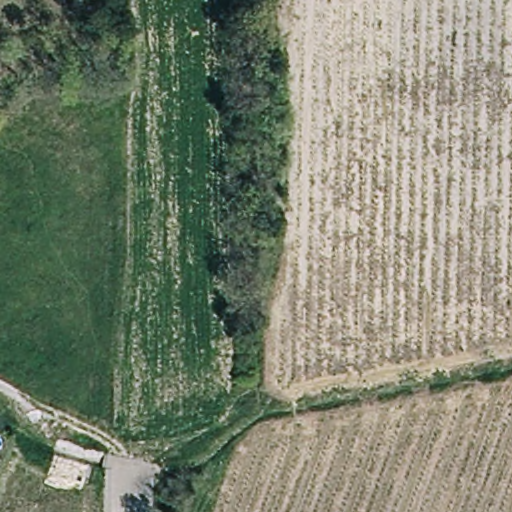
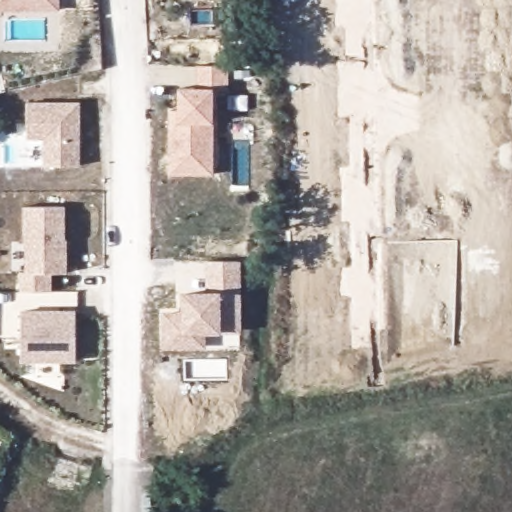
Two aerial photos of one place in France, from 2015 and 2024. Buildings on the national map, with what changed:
new [(61,11),(0,11),(0,0),(60,0),(61,11)]
new [(177,109),(178,89),(199,87),(198,66),(228,65),(229,91),(215,91),(213,124),(214,174),(169,174),(170,109),(177,109)]
new [(81,166),(42,165),(43,138),(27,138),(27,101),(81,101),(81,166)]
new [(26,273),(23,206),(67,206),(66,240),(68,240),(68,273),(53,273),(52,291),(19,291),(19,272),(26,273)]
new [(241,260),(242,332),(222,333),(208,333),(207,347),(163,348),(162,310),(182,309),(182,291),(206,291),(205,261),(241,260)]
new [(77,310),(77,362),(22,363),(20,311),(77,310)]

